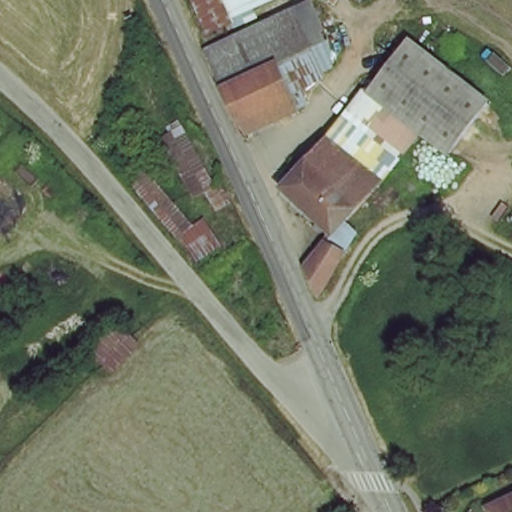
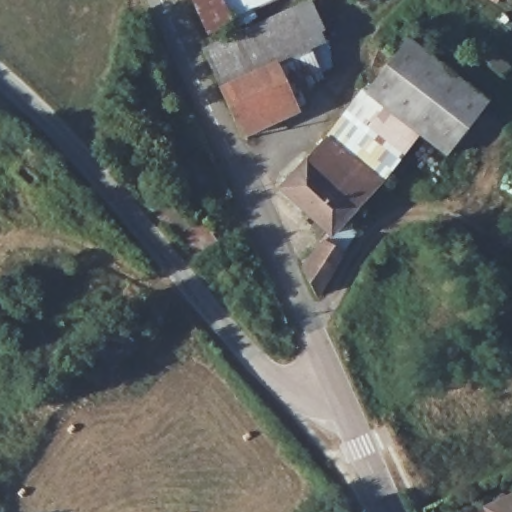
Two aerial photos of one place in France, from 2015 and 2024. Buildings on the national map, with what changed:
unchanged [(329,45),(313,52),(325,83),(296,100),(305,116),(245,142),(207,53),(235,35),(230,26),(205,37),(188,0),(277,0),(255,12),(258,25),(310,2),(329,45)]
unchanged [(460,146),(445,162),(420,137),(382,177),(335,140),(383,92),(417,47),(480,103),(492,113),(460,146)]
unchanged [(330,231),(287,188),(335,140),(382,177),(330,231)]
unchanged [(192,227),(204,220),(224,248),(193,265),(123,189),(144,170),(192,227)]
unchanged [(307,275),(325,244),(345,253),(319,301),(307,275)]
unchanged [(138,350),(105,376),(88,351),(118,326),(138,350)]
unchanged [(512,495),(512,512),(486,512),(483,507),(512,495)]

